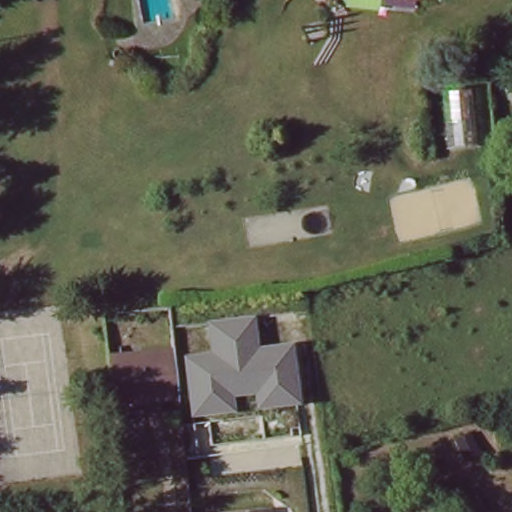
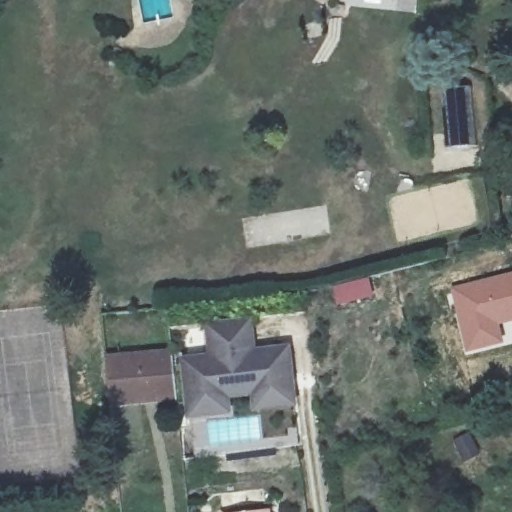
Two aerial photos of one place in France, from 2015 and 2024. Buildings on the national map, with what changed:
unchanged [(479,153),(456,155),(448,91),(474,89),(479,153)]
new [(512,322),(500,324),(504,344),(465,353),(448,287),(512,271),(512,322)]
new [(368,276),(372,297),(335,305),(330,285),(368,276)]
unchanged [(250,319),(255,353),(288,348),(297,404),(257,408),(256,393),(230,396),(231,412),(190,417),(176,328),(250,319)]
unchanged [(106,362),(170,356),(175,401),(110,406),(106,362)]

